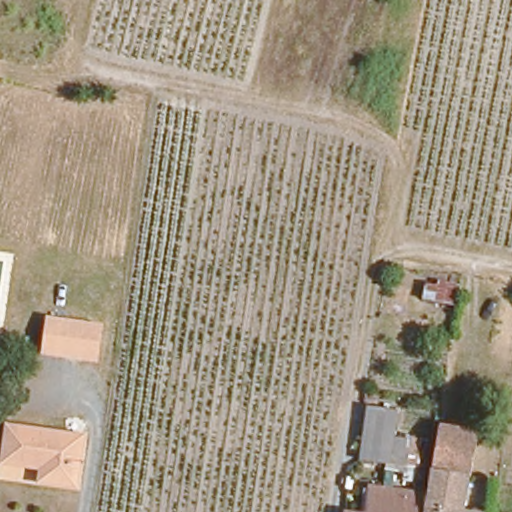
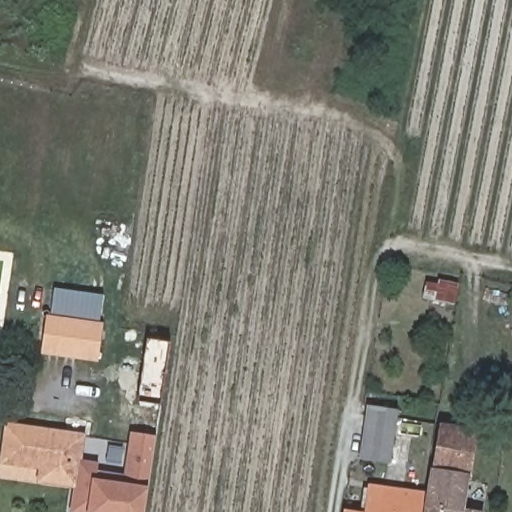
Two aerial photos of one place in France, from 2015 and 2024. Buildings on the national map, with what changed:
unchanged [(99,319),(95,352),(44,345),(49,312),(99,319)]
unchanged [(391,459),(365,454),(372,405),(373,400),(401,405),(400,411),(391,459)]
unchanged [(79,430),(74,480),(40,475),(41,462),(1,455),(6,419),(79,430)]
unchanged [(476,426),(469,476),(434,470),(442,421),(476,426)]
new [(99,462),(98,471),(125,473),(130,433),(157,436),(150,487),(145,512),(71,512),(74,480),(76,461),(99,462)]
unchanged [(434,470),(469,476),(465,507),(482,509),(482,512),(427,512),(434,470)]
unchanged [(348,501),(364,503),(369,475),(427,485),(423,512),(346,512),(348,501)]

